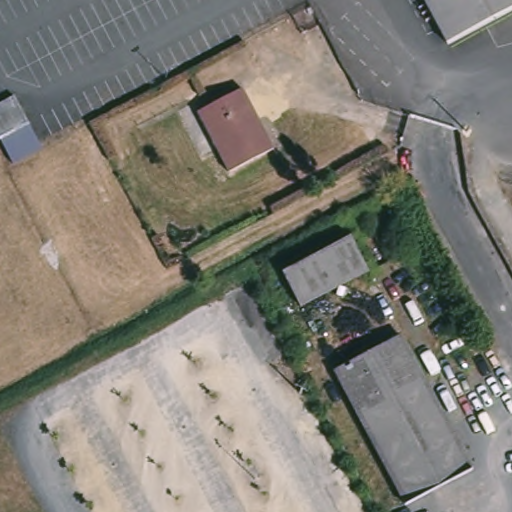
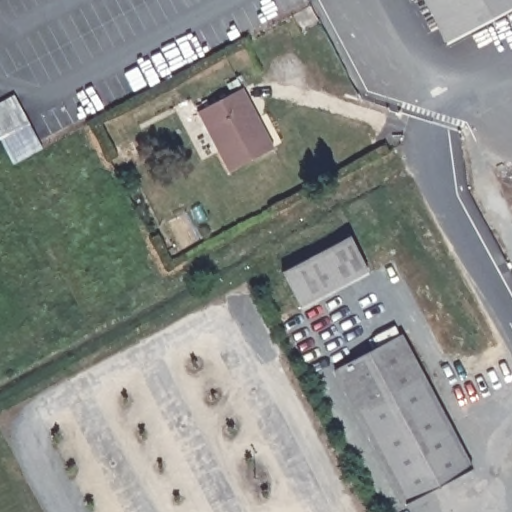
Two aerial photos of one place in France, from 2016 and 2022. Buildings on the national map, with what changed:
unchanged [(448,37),(429,0),(512,0),(512,3),(448,37)]
unchanged [(232,177),(199,117),(244,93),(277,153),(232,177)]
unchanged [(8,165),(0,149),(0,99),(8,96),(36,149),(8,165)]
unchanged [(298,315),(281,282),(347,246),(364,280),(298,315)]
unchanged [(470,476),(406,508),(334,377),(399,341),(470,476)]

